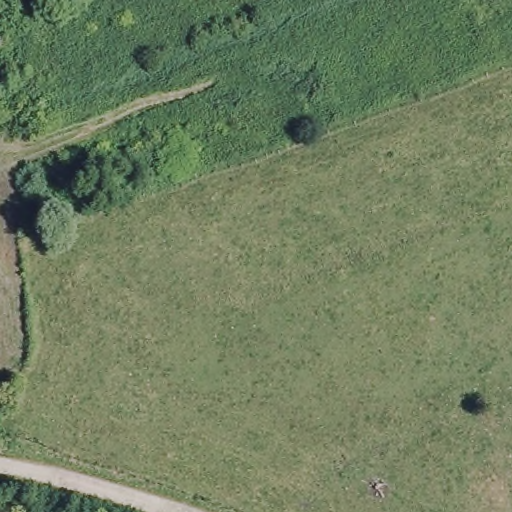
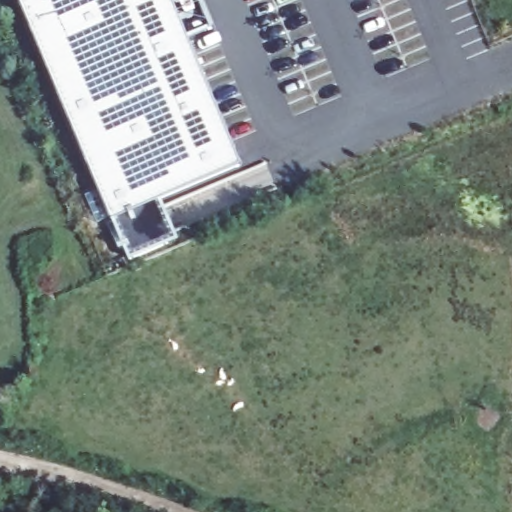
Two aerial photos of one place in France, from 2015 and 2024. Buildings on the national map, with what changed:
new [(160,206),(177,242),(127,263),(16,0),(169,0),(241,175),(160,206)]

